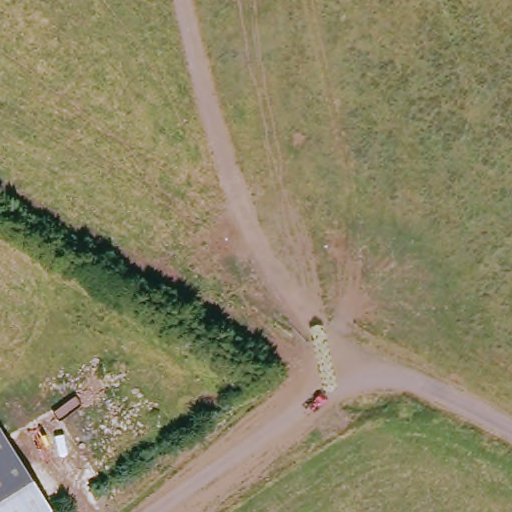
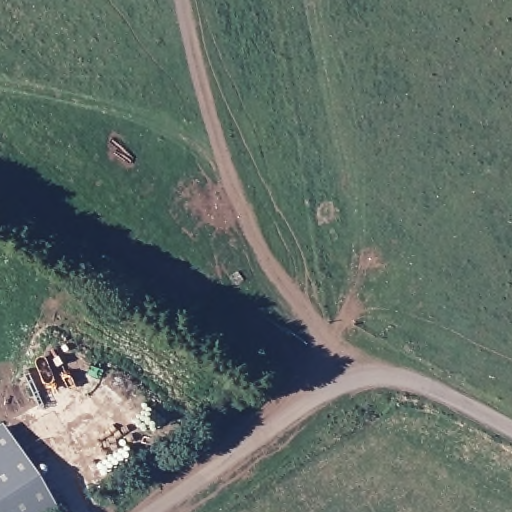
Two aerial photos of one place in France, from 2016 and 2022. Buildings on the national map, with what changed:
unchanged [(0,512),(0,430),(53,512),(0,512)]

